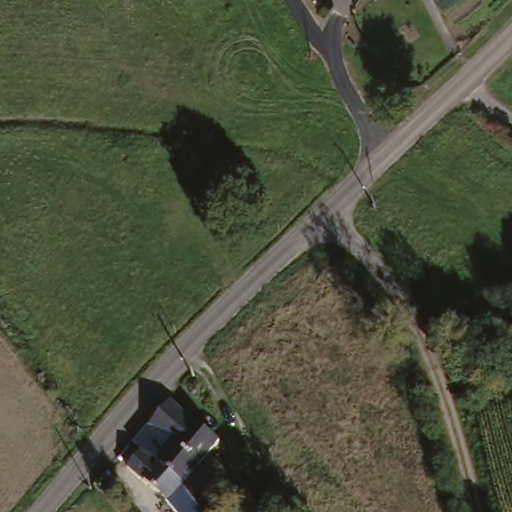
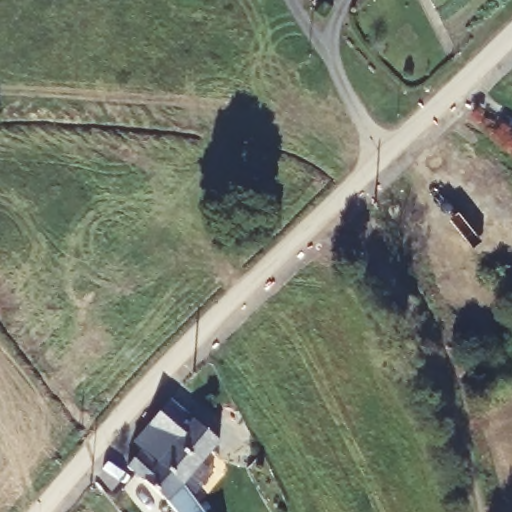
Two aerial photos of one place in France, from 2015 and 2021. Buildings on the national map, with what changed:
unchanged [(221,442),(206,460),(220,475),(201,498),(141,435),(171,398),(221,442)]
unchanged [(201,498),(209,510),(211,512),(183,512),(130,465),(141,450),(134,443),(141,435),(201,498)]

